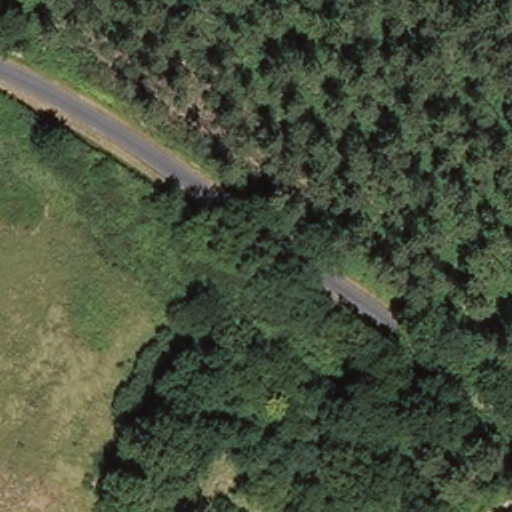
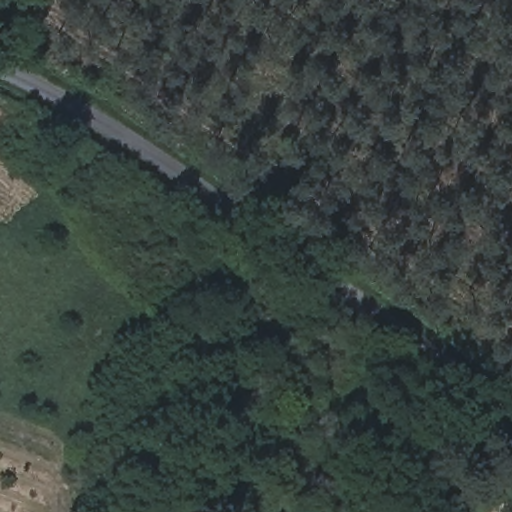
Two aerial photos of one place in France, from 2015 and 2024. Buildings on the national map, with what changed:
[]

